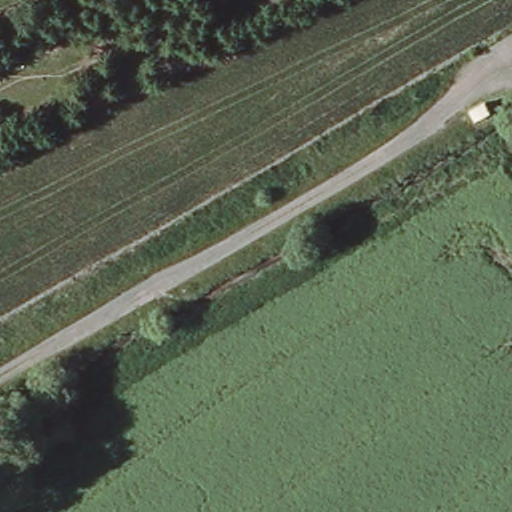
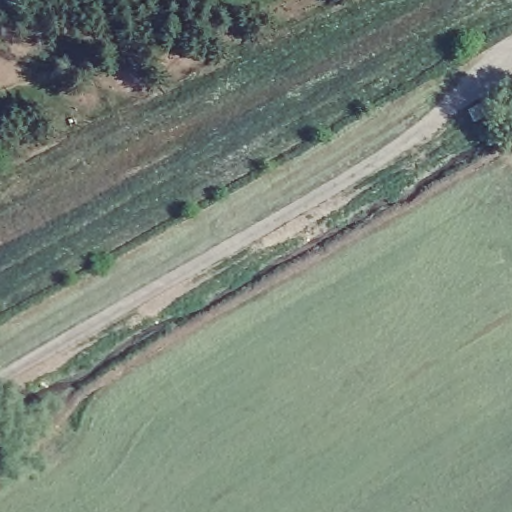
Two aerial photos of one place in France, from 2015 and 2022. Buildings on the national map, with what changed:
unchanged [(488,112),(472,120),(467,111),(482,103),(488,112)]

